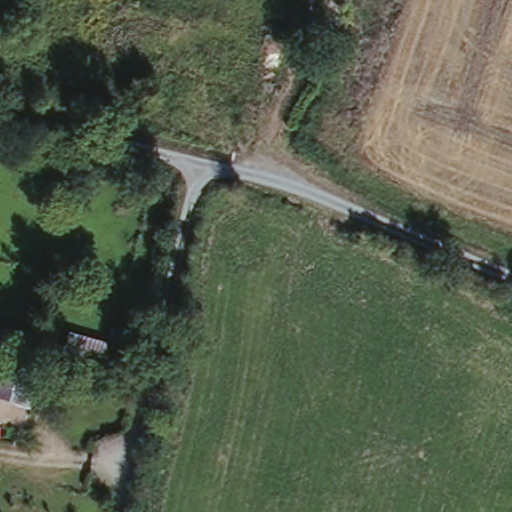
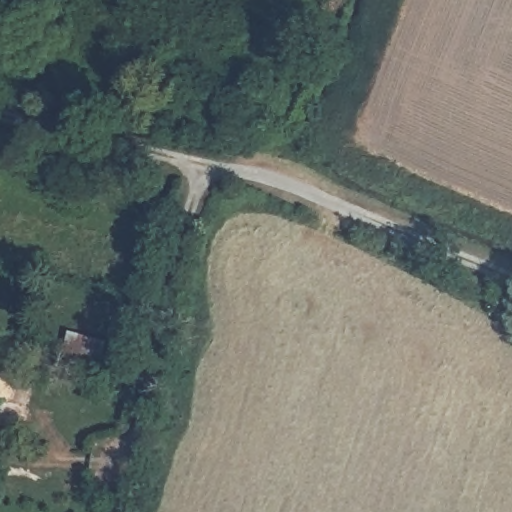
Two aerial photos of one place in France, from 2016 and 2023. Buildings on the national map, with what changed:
unchanged [(273,109),(248,99),(265,29),(296,39),(273,109)]
unchanged [(69,331),(105,337),(109,328),(136,332),(126,367),(63,353),(69,331)]

